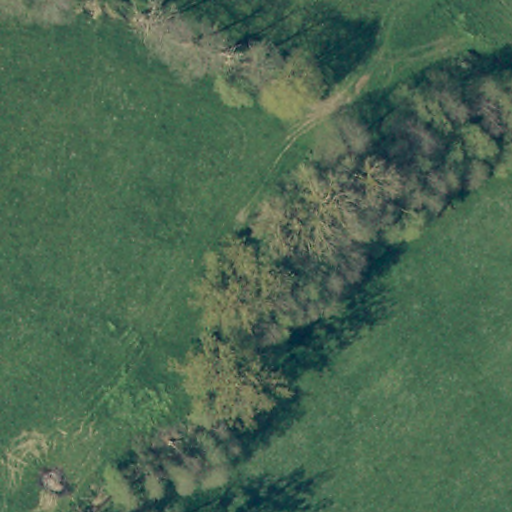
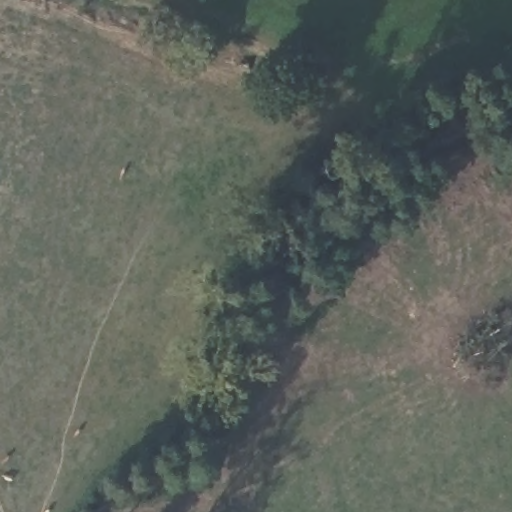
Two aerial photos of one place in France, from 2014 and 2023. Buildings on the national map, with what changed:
[]

